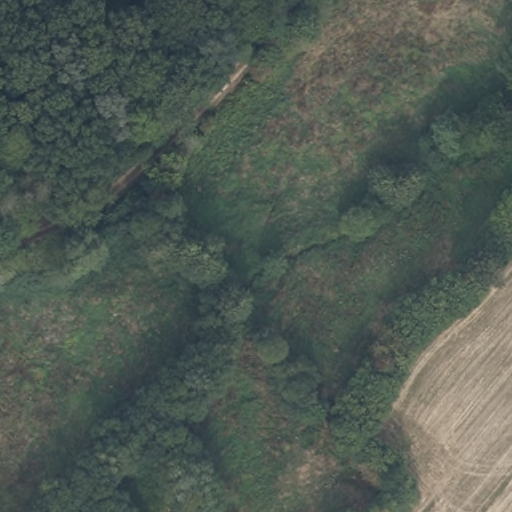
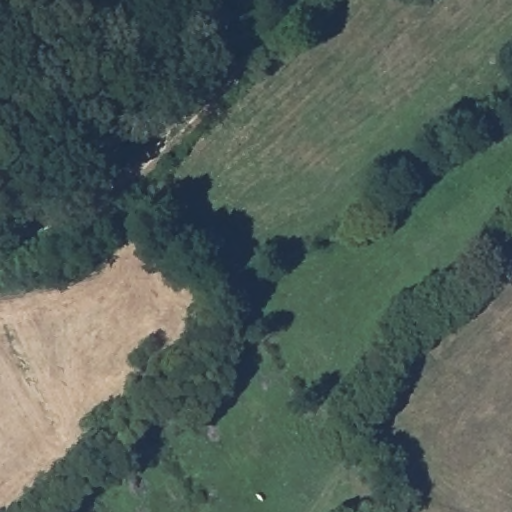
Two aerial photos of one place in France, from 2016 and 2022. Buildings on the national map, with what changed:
unchanged [(331,512),(325,506),(331,501),(338,509),(336,512),(331,512)]

